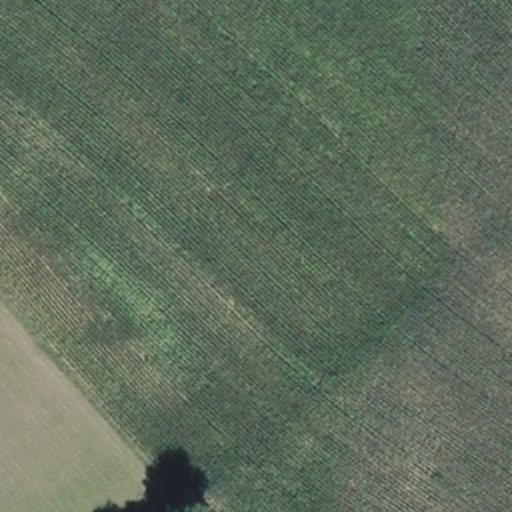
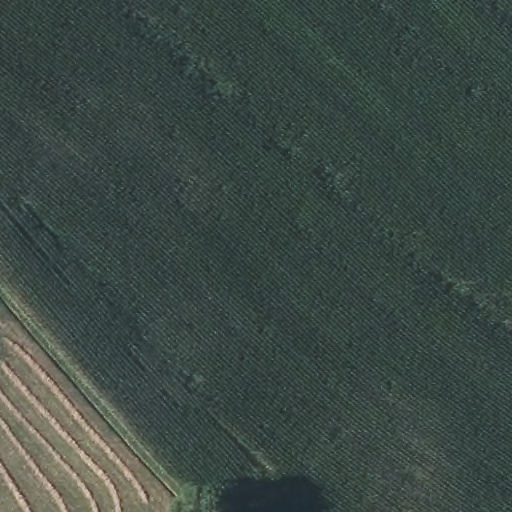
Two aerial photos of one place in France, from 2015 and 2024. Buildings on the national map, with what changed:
[]

